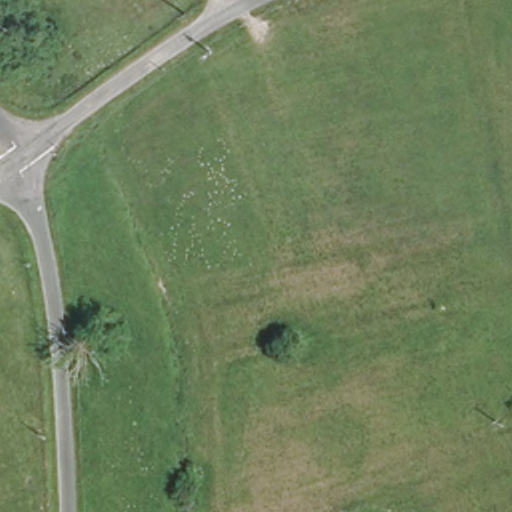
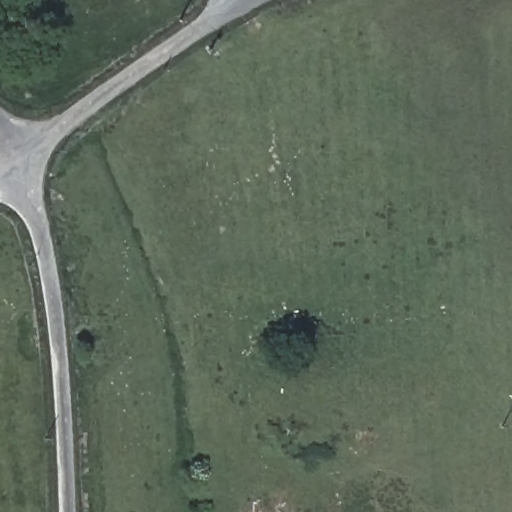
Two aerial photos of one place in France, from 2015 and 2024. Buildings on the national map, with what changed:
[]

